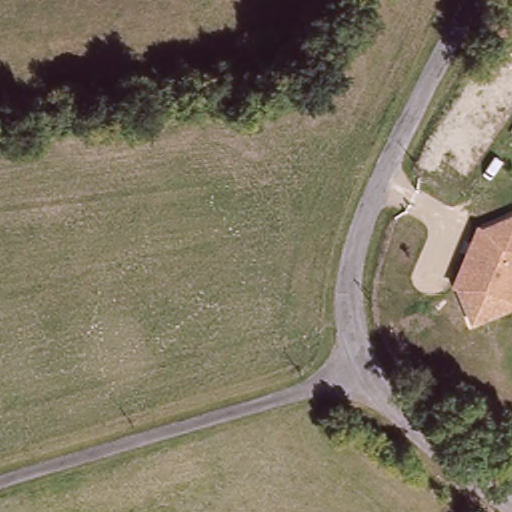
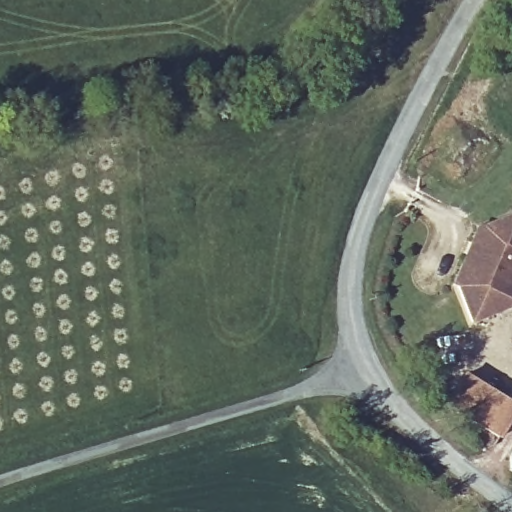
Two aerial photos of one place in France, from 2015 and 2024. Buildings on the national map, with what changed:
unchanged [(457,286),(453,284),(477,224),(483,224),(512,214),(512,307),(472,324),(457,286)]
new [(445,405),(463,373),(512,403),(512,418),(499,438),(445,405)]

